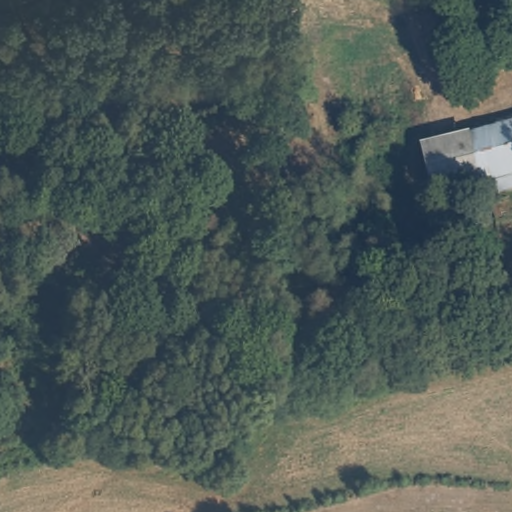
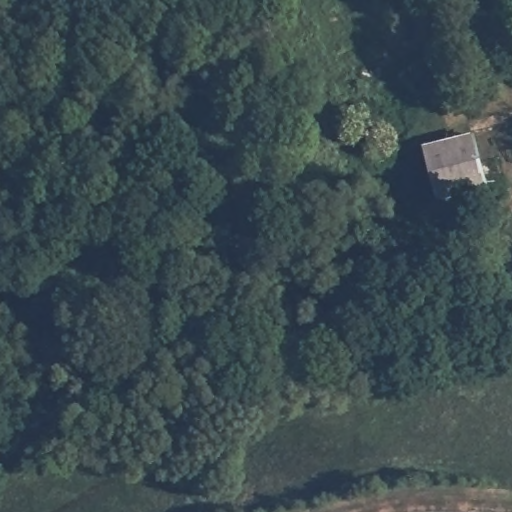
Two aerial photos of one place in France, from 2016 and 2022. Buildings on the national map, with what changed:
unchanged [(489,190),(441,203),(438,189),(434,174),(428,151),(475,139),(512,129),(512,174),(486,181),(489,190)]

